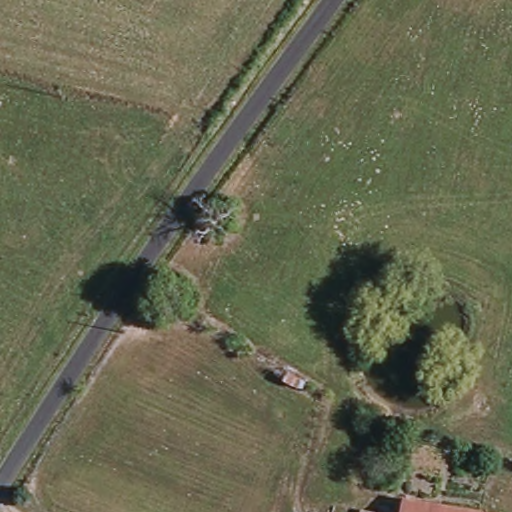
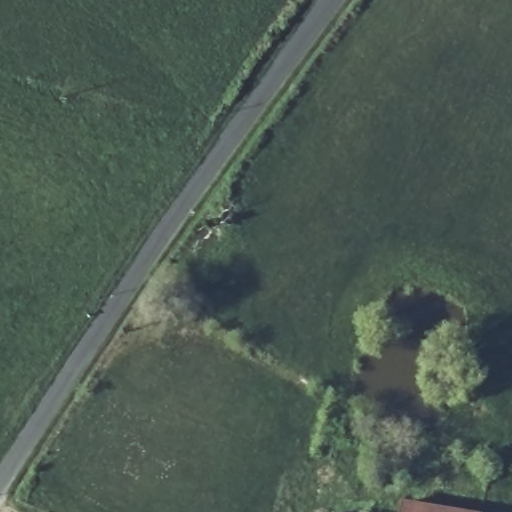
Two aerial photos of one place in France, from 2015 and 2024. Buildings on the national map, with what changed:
unchanged [(396,507),(427,512),(395,512),(396,507)]

